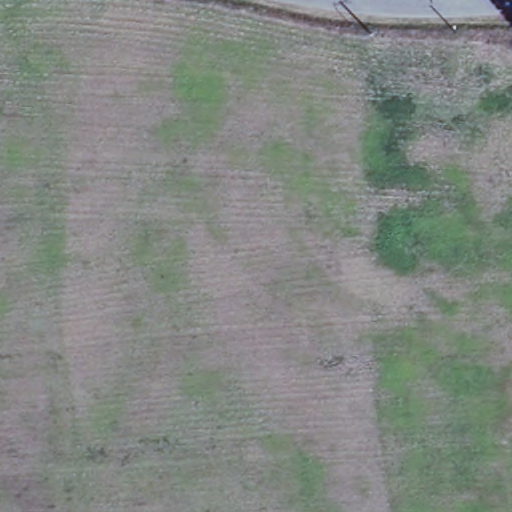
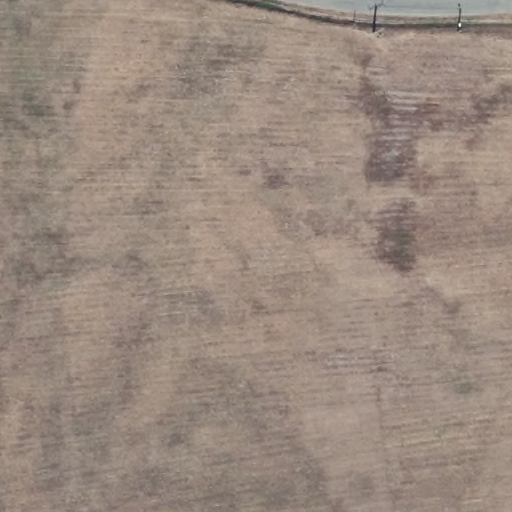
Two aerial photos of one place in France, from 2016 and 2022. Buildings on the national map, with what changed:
[]

